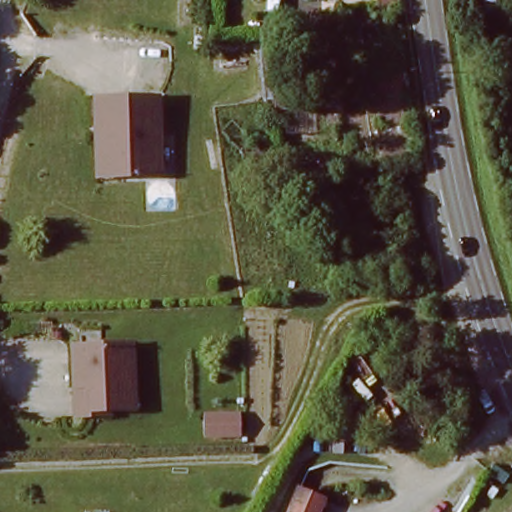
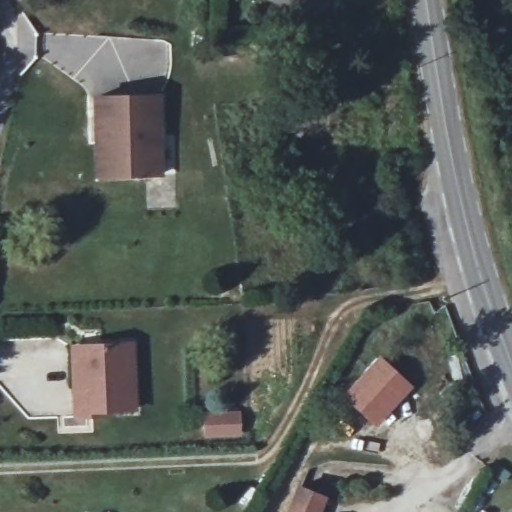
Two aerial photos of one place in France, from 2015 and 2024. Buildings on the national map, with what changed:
unchanged [(399,4),(381,3),(381,0),(398,0),(399,4)]
unchanged [(101,96),(164,98),(163,176),(122,175),(123,130),(100,130),(101,96)]
unchanged [(123,130),(122,175),(99,175),(100,130),(123,130)]
unchanged [(133,348),(132,413),(73,411),(74,346),(133,348)]
new [(341,396),(378,355),(413,387),(376,427),(341,396)]
unchanged [(329,500),(325,512),(287,512),(299,486),(329,500)]

